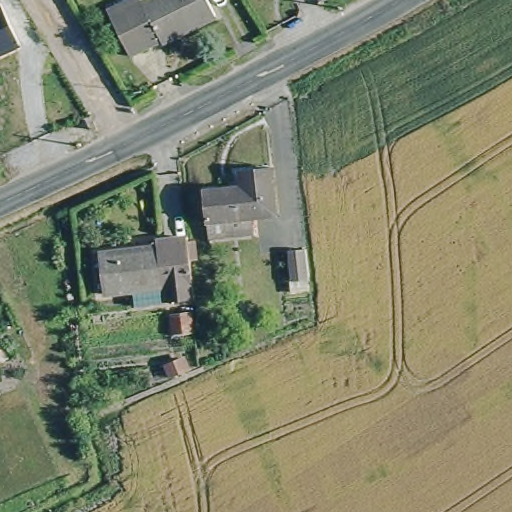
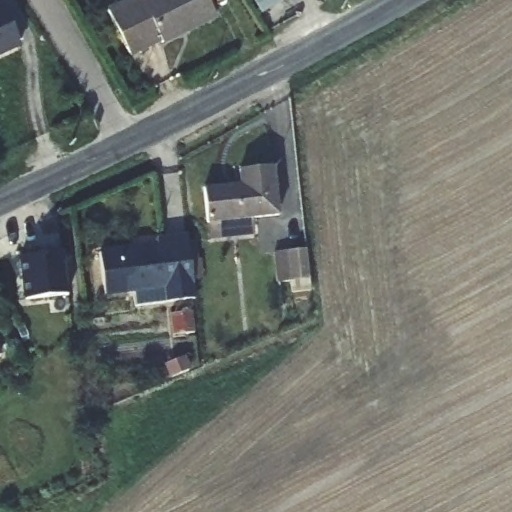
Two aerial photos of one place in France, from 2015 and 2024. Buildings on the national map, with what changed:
unchanged [(134,0),(135,0),(140,6),(150,0),(201,0),(210,15),(130,57),(107,13),(134,0)]
unchanged [(2,1),(22,45),(0,56),(0,2),(2,1)]
unchanged [(197,194),(235,188),(233,172),(267,168),(273,214),(201,224),(197,194)]
unchanged [(128,307),(126,295),(98,296),(96,258),(157,252),(157,244),(182,242),(190,302),(128,307)]
unchanged [(301,261),(302,270),(284,272),(281,245),(300,243),(301,261)]
new [(17,258),(62,253),(66,295),(22,300),(17,258)]
unchanged [(1,354),(0,355),(0,351),(1,354)]

